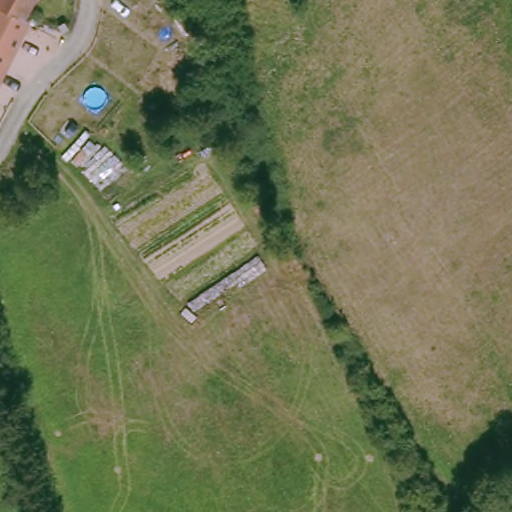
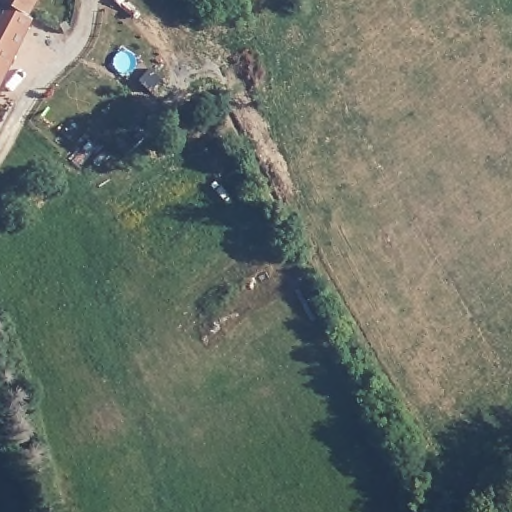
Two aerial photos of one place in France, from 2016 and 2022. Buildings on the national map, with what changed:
unchanged [(8,61),(0,57),(0,0),(7,0),(33,13),(8,61)]
unchanged [(31,8),(17,0),(35,0),(31,8)]
unchanged [(0,77),(0,57),(8,61),(0,77)]

